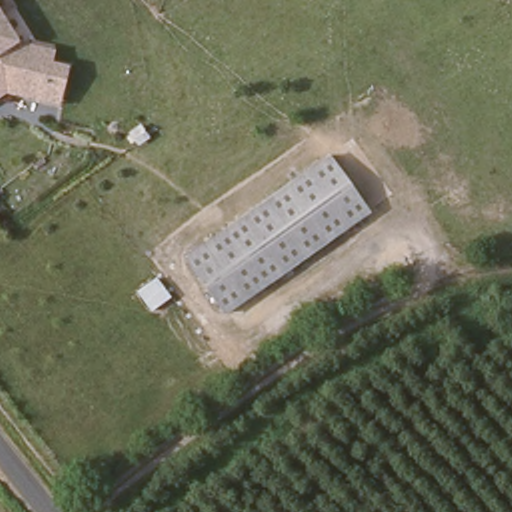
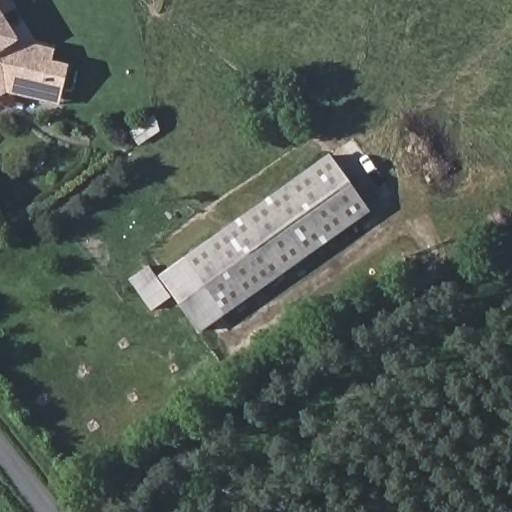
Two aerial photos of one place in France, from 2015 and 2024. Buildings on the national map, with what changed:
unchanged [(62,108),(7,94),(0,98),(0,0),(13,0),(19,11),(8,16),(22,40),(56,49),(55,60),(71,64),(62,108)]
unchanged [(229,314),(184,255),(330,153),(372,213),(229,314)]
new [(184,255),(229,314),(200,333),(173,296),(151,312),(127,279),(150,265),(159,276),(184,255)]

